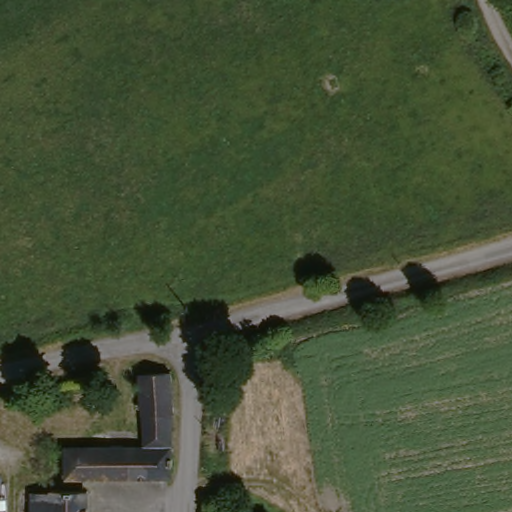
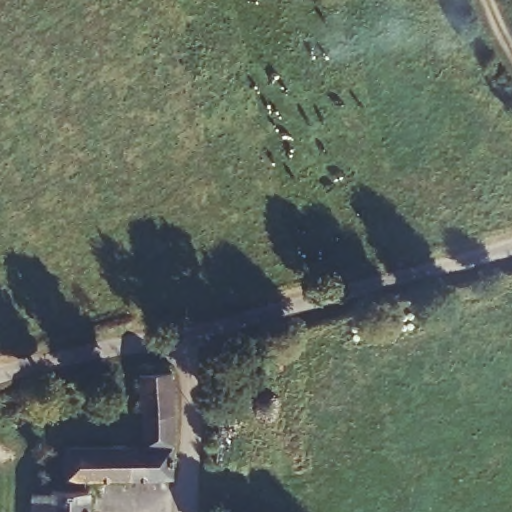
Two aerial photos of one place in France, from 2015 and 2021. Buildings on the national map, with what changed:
unchanged [(178,376),(173,452),(139,450),(144,376),(178,376)]
unchanged [(139,450),(173,452),(174,490),(70,492),(70,453),(139,450)]
unchanged [(56,491),(70,492),(93,496),(92,512),(33,512),(33,510),(31,496),(53,497),(56,491)]

